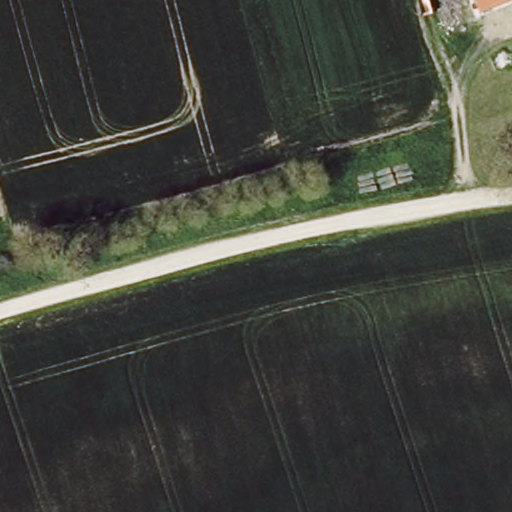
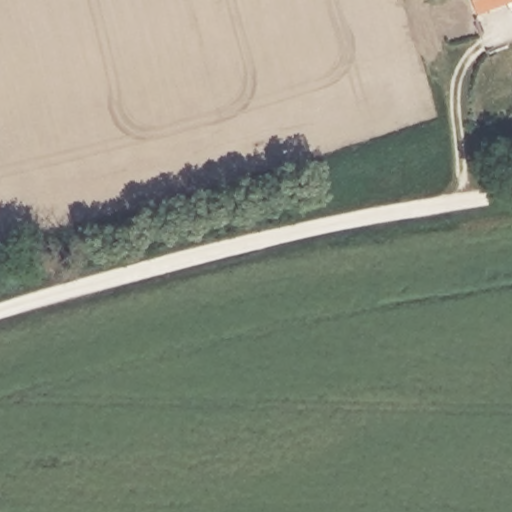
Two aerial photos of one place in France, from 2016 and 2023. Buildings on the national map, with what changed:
unchanged [(473,0),(510,0),(478,12),(473,0)]

